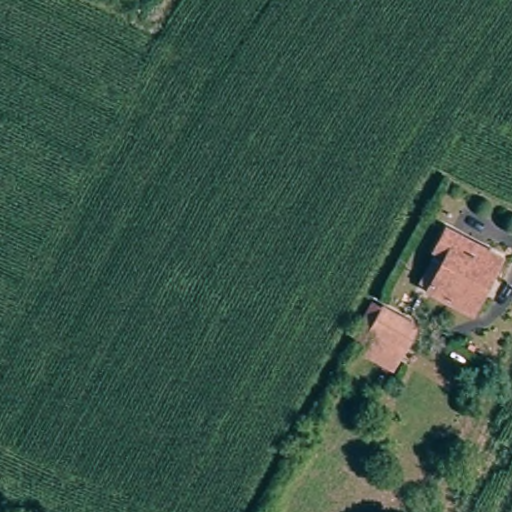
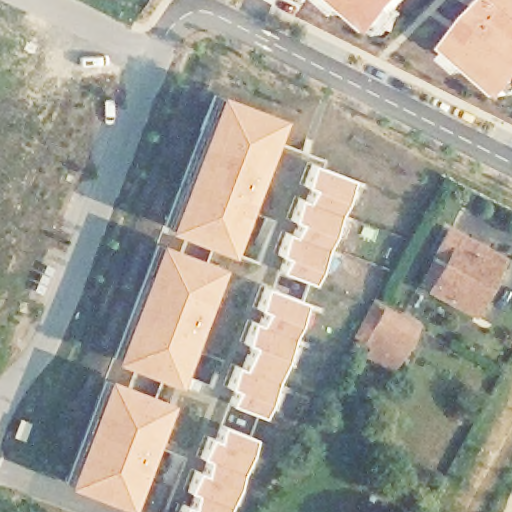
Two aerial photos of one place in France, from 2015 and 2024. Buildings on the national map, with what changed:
new [(298,0),(308,0),(305,4),(298,0)]
new [(381,25),(377,29),(351,6),(345,13),(330,0),(404,0),(396,9),(402,15),(388,30),(381,25)]
new [(474,65),(468,71),(452,57),(458,51),(453,46),(495,0),(512,0),(512,89),(507,94),(474,65)]
new [(274,118),(267,135),(327,158),(324,166),(351,177),(221,512),(162,512),(181,449),(148,439),(127,497),(71,479),(215,94),(274,118)]
unchanged [(470,307),(419,279),(447,229),(498,255),(470,307)]
unchanged [(390,371),(365,357),(370,349),(350,338),(368,305),(380,312),(382,309),(414,328),(390,371)]

